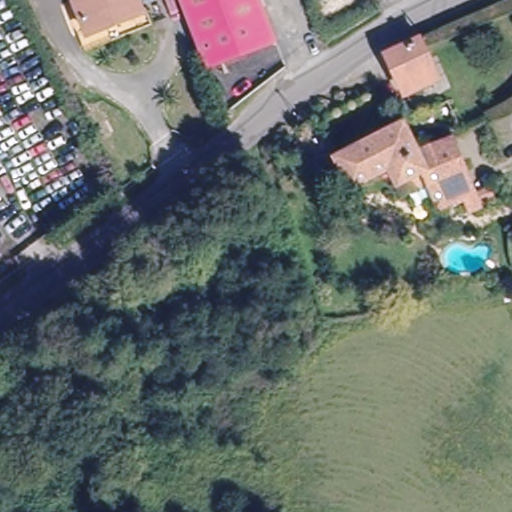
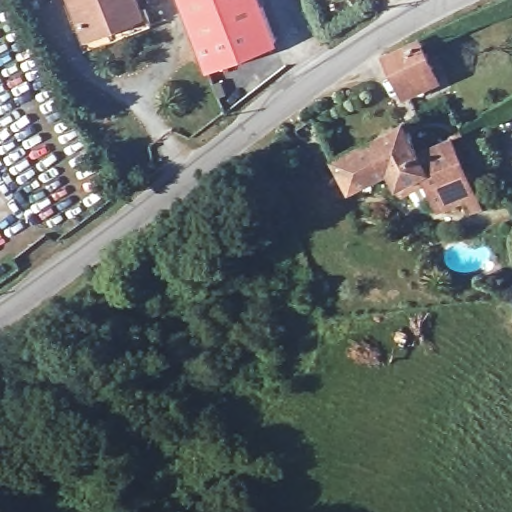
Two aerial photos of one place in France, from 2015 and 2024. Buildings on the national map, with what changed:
unchanged [(72,0),(132,0),(139,19),(85,38),(72,0)]
unchanged [(275,43),(203,70),(200,61),(187,20),(180,0),(260,0),(275,43)]
unchanged [(397,94),(389,76),(381,59),(420,41),(430,66),(434,79),(410,89),(397,94)]
unchanged [(415,151),(447,137),(473,197),(490,191),(497,205),(469,216),(465,205),(435,216),(422,190),(398,200),(385,173),(346,189),(330,156),(401,123),(415,151)]

